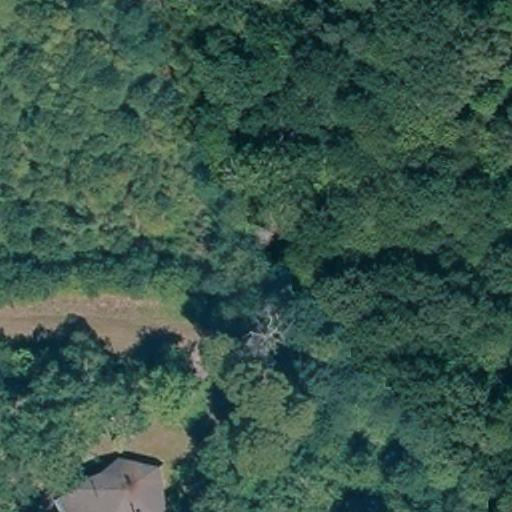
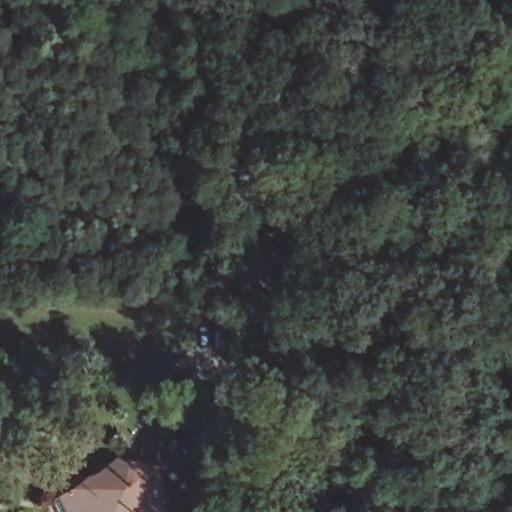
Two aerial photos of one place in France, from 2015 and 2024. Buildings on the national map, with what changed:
unchanged [(75,490),(118,459),(169,466),(173,512),(61,512),(58,495),(75,490)]

